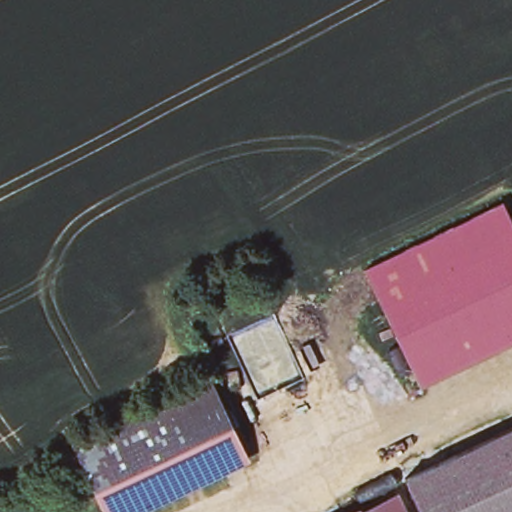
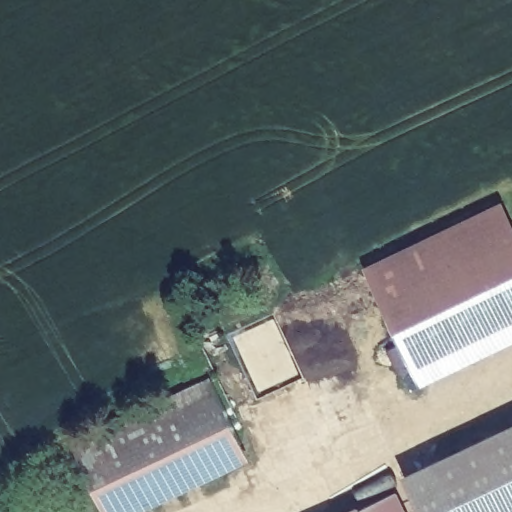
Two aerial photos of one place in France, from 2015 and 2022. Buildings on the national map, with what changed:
unchanged [(512,341),(417,384),(363,268),(501,204),(512,227),(512,341)]
unchanged [(108,512),(107,512),(81,458),(78,449),(213,383),(241,445),(108,512)]
unchanged [(512,512),(422,512),(406,475),(512,426),(512,512)]
unchanged [(397,512),(357,512),(389,497),(397,512)]

